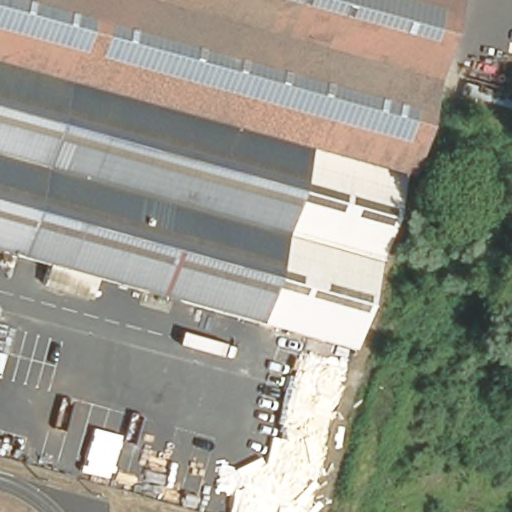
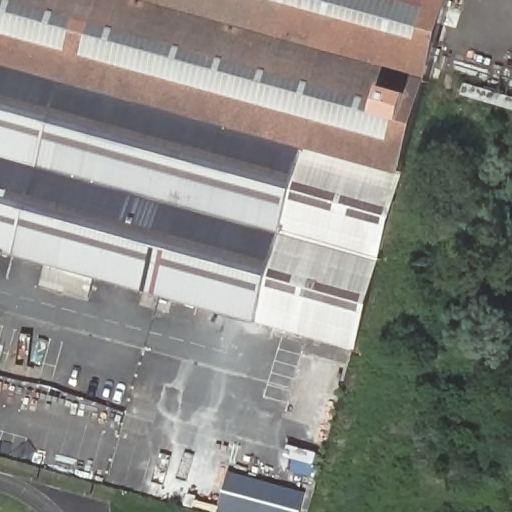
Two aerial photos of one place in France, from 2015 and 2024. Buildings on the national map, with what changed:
unchanged [(400,171),(402,172),(354,350),(256,322),(0,251),(0,0),(449,0),(400,171)]
new [(228,472),(304,491),(299,512),(223,512),(219,511),(228,472)]

